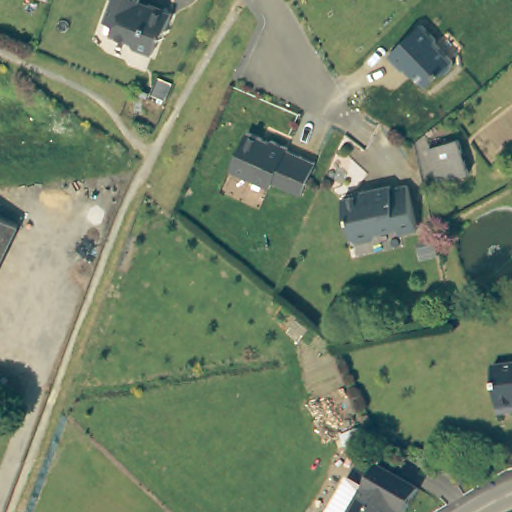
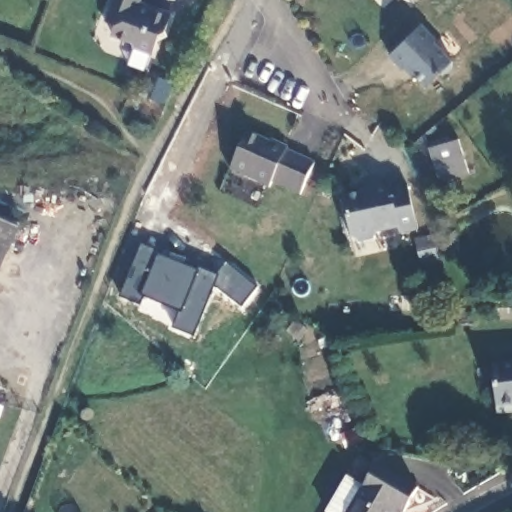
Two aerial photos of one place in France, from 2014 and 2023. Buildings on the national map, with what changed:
unchanged [(146,7),(148,2),(172,11),(165,31),(160,29),(152,52),(133,46),(131,39),(110,33),(116,20),(106,17),(112,0),(139,0),(137,5),(146,7)]
unchanged [(432,40),(451,57),(451,64),(443,71),(438,71),(426,84),(415,73),(408,73),(402,65),(399,67),(386,52),(418,22),(432,37),(432,40)]
unchanged [(286,147),(284,150),(314,162),(300,195),(271,182),(267,187),(229,170),(246,131),(267,141),(268,139),(286,147)]
unchanged [(467,168),(438,177),(427,144),(456,135),(467,168)]
unchanged [(391,182),(391,186),(408,182),(417,227),(400,231),(398,225),(377,229),(373,236),(356,239),(349,235),(342,194),(372,189),(372,186),(391,182)]
unchanged [(20,224),(0,269),(0,215),(20,224)]
new [(142,245),(161,252),(160,256),(185,265),(186,262),(217,273),(227,260),(259,285),(241,307),(216,287),(211,285),(192,333),(174,327),(180,310),(143,295),(140,303),(122,296),(142,245)]
unchanged [(492,366),(512,363),(512,410),(500,412),(492,366)]
unchanged [(358,487),(372,462),(415,485),(401,510),(395,507),(393,512),(323,512),(342,477),(358,487)]

